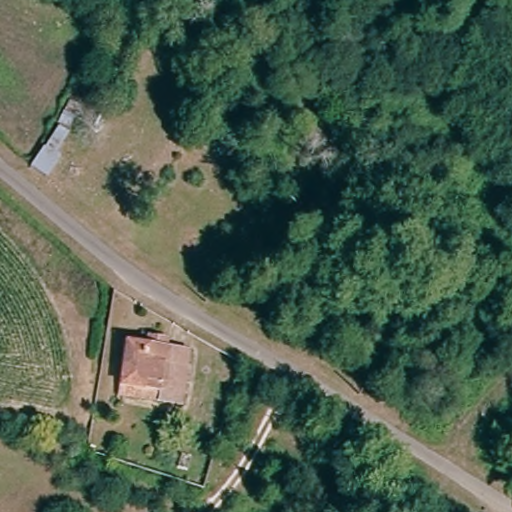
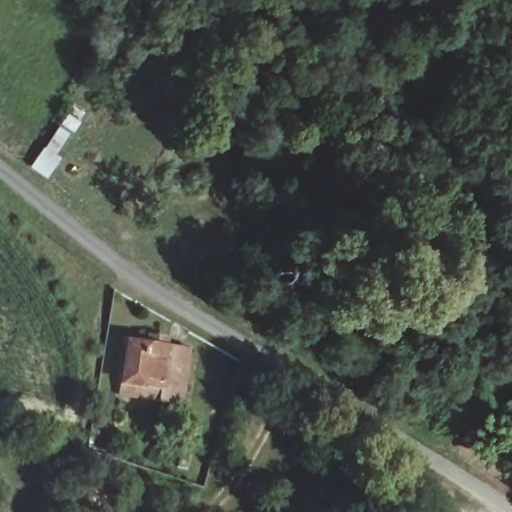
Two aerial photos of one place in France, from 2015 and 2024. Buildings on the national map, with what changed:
unchanged [(181,405),(128,397),(137,350),(150,352),(151,343),(173,346),(173,355),(189,359),(181,405)]

